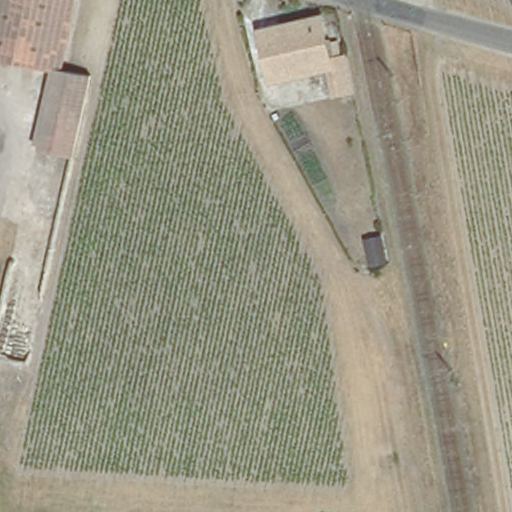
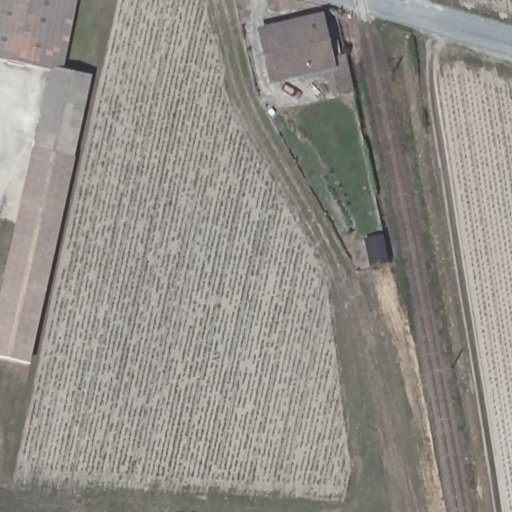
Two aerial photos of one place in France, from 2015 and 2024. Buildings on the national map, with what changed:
unchanged [(62,67),(61,66),(57,66),(0,55),(0,0),(76,0),(62,67)]
unchanged [(259,34),(318,21),(324,44),(333,42),(337,56),(341,55),(349,91),(331,95),(325,65),(288,74),(284,59),(266,63),(259,34)]
unchanged [(91,72),(80,126),(76,143),(41,136),(57,66),(61,66),(62,67),(91,72)]
new [(30,365),(0,359),(0,295),(33,147),(41,136),(76,143),(75,158),(30,365)]
demolished [(0,352),(0,311),(13,255),(50,264),(29,359),(0,352)]

